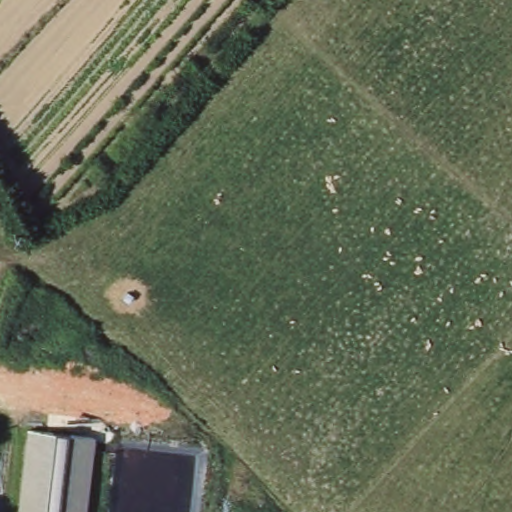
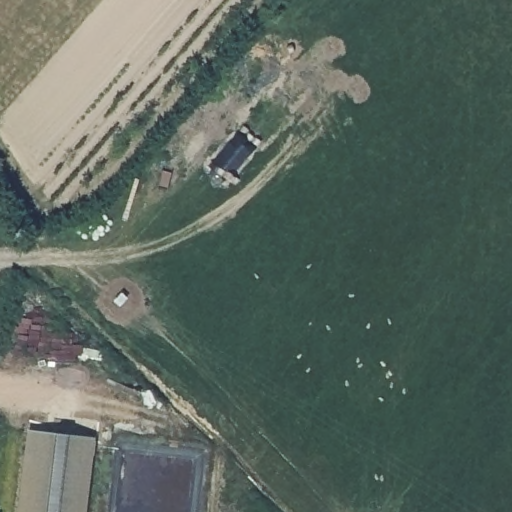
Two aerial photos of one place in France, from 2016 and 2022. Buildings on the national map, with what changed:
unchanged [(98,447),(91,512),(23,512),(32,438),(98,447)]

